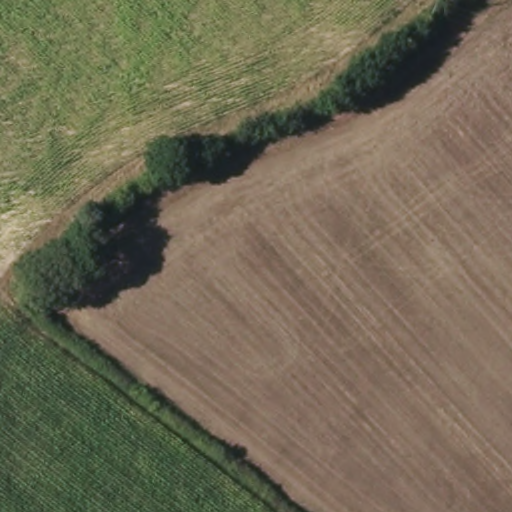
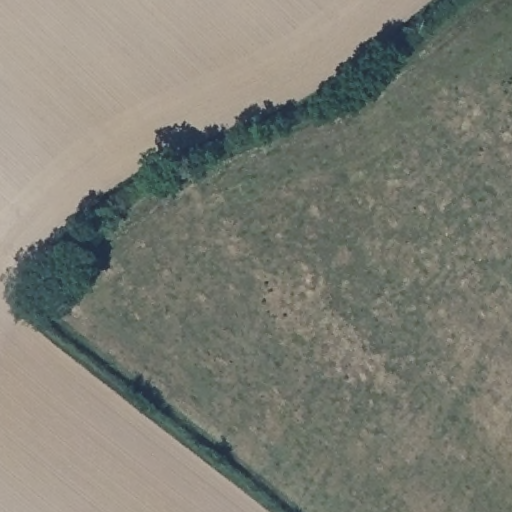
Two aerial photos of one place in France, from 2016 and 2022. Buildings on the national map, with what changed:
[]

